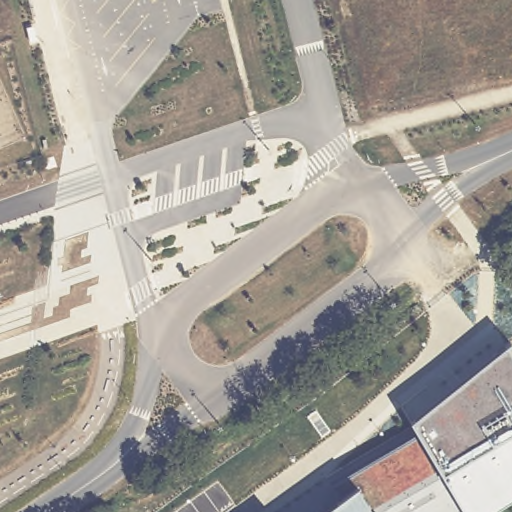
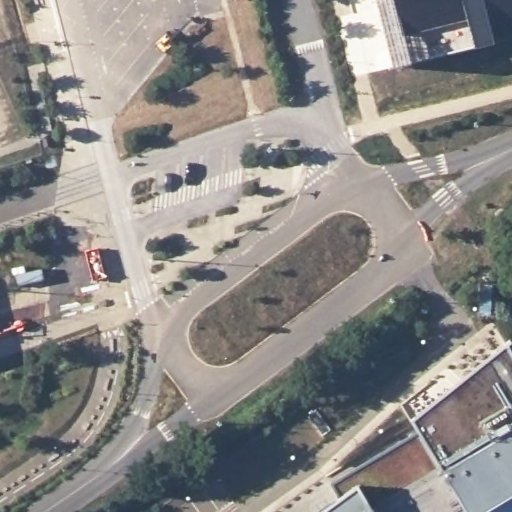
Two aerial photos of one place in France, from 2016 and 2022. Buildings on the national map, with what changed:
new [(512,0),(512,38),(391,70),(374,0),(512,0)]
unchanged [(512,355),(512,496),(489,512),(319,512),(338,498),(332,485),(418,434),(410,421),(506,345),(512,355)]

